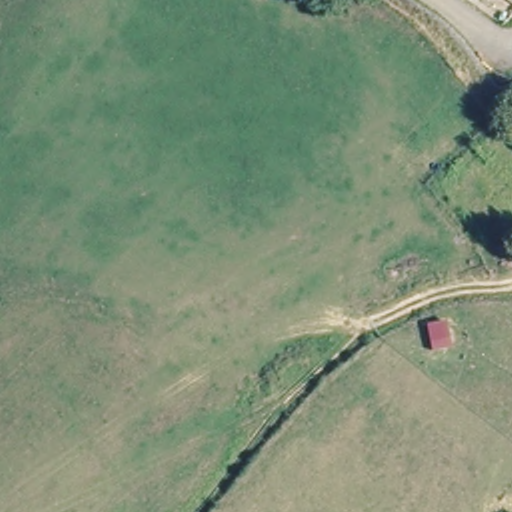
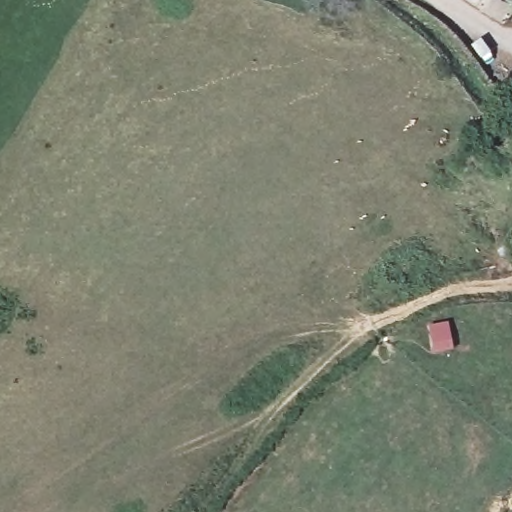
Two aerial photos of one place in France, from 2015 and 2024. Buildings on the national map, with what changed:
unchanged [(475,0),(512,0),(512,21),(511,23),(475,0)]

